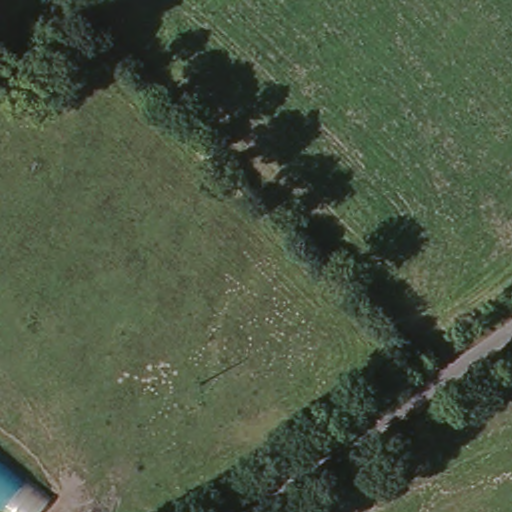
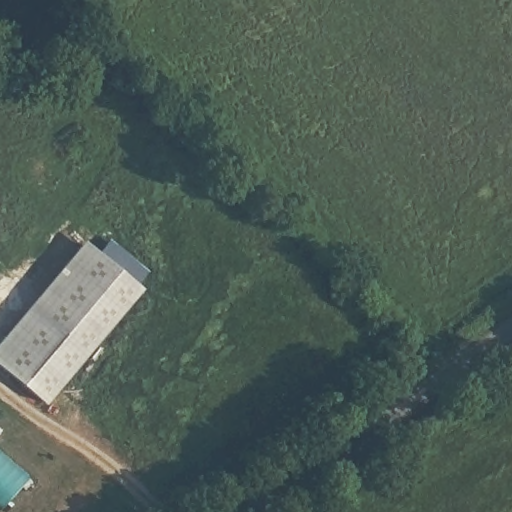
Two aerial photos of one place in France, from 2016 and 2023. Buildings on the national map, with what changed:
new [(84,239),(98,251),(111,237),(149,272),(138,284),(142,288),(45,403),(0,366),(0,340),(84,239)]
unchanged [(53,497),(40,512),(5,512),(0,508),(0,454),(53,497)]

